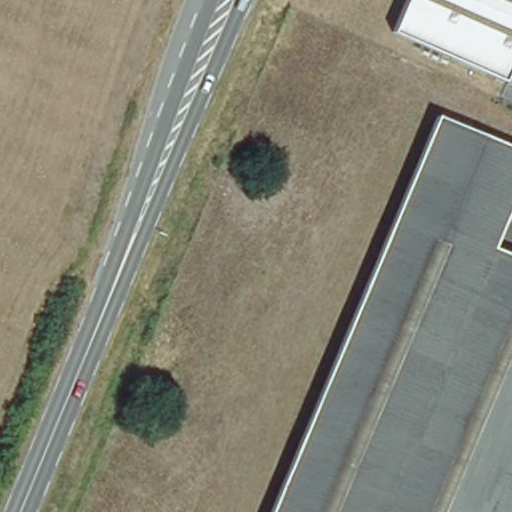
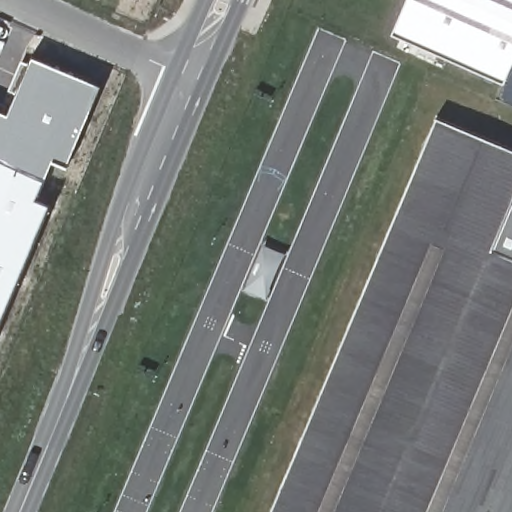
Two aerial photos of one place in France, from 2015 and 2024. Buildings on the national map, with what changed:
unchanged [(403,0),(512,0),(512,51),(499,81),(389,33),(403,0)]
new [(8,113),(32,57),(101,84),(67,166),(52,160),(36,197),(49,204),(0,324),(0,110),(8,113)]
unchanged [(512,151),(512,202),(492,248),(396,208),(434,117),(512,151)]
new [(512,202),(512,257),(492,248),(512,202)]
unchanged [(512,257),(512,512),(267,512),(396,208),(492,248),(512,257)]

